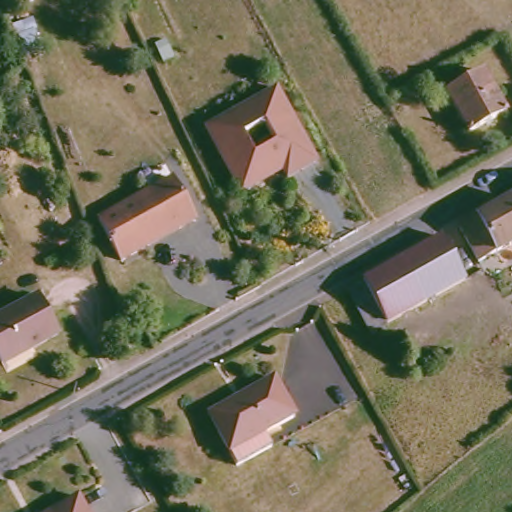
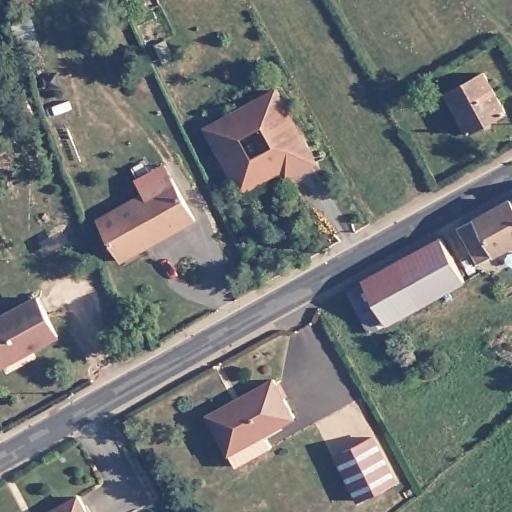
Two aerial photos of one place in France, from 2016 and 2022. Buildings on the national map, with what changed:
unchanged [(36,0),(37,4),(20,11),(16,0),(36,0)]
unchanged [(502,111),(463,133),(442,93),(481,72),(502,111)]
unchanged [(234,190),(213,152),(202,131),(213,125),(273,91),(312,164),(283,180),(278,172),(237,195),(234,190)]
unchanged [(171,182),(194,223),(121,263),(98,222),(171,182)]
unchanged [(460,226),(512,198),(512,243),(477,260),(460,226)]
unchanged [(358,315),(345,290),(358,282),(357,280),(437,236),(460,280),(382,323),(367,331),(358,315)]
unchanged [(52,336),(19,356),(18,354),(0,364),(0,319),(32,300),(52,336)]
unchanged [(230,464),(204,418),(237,399),(235,395),(267,378),(287,415),(257,432),(263,445),(230,464)]
new [(340,455),(375,435),(400,479),(366,499),(340,455)]
unchanged [(83,512),(44,512),(73,495),(83,512)]

